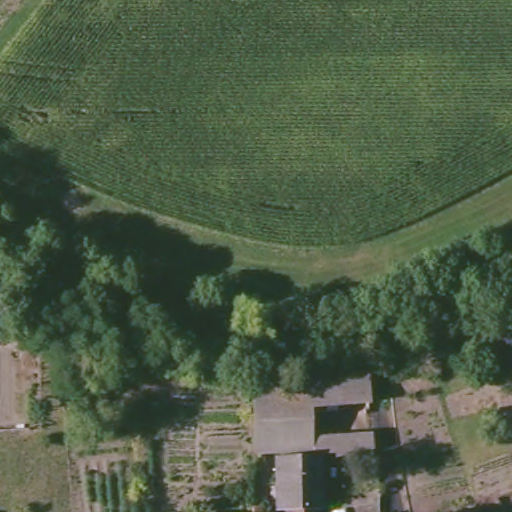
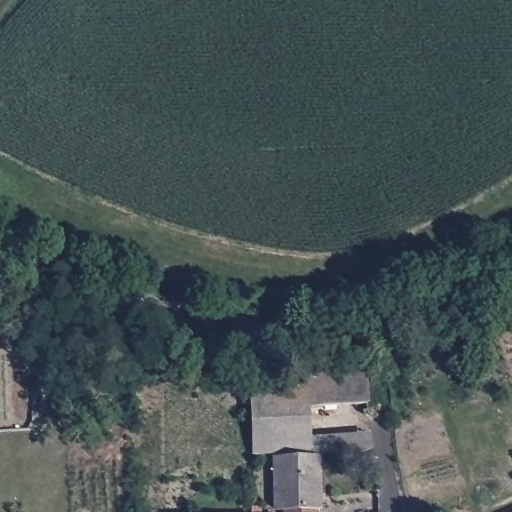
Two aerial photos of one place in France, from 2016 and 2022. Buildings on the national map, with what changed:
unchanged [(512,319),(512,369),(497,326),(512,319)]
unchanged [(377,450),(341,453),(341,452),(324,452),(257,455),(260,394),(310,388),(310,378),(358,375),(362,403),(313,410),(313,431),(316,431),(316,442),(375,433),(377,450)]
unchanged [(327,507),(323,507),(323,512),(292,512),(292,508),(282,510),(278,456),(324,452),(327,507)]
unchanged [(264,507),(264,512),(252,512),(252,507),(264,507)]

